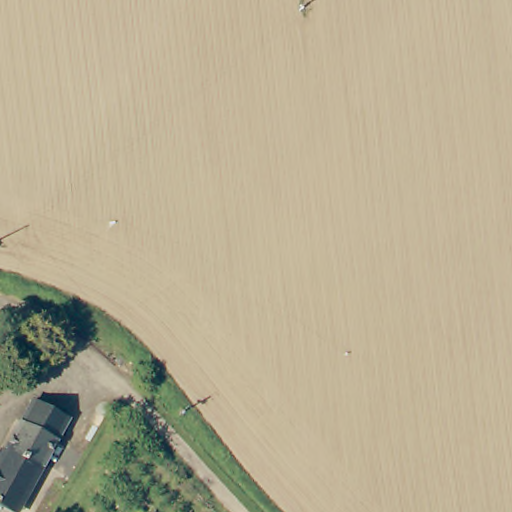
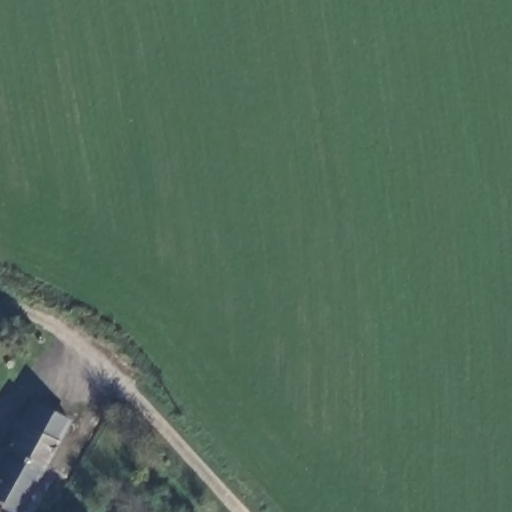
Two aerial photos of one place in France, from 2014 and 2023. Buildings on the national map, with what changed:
unchanged [(42,467),(5,450),(31,402),(66,420),(42,467)]
unchanged [(30,485),(17,511),(0,503),(0,462),(5,450),(42,467),(32,486),(30,485)]

